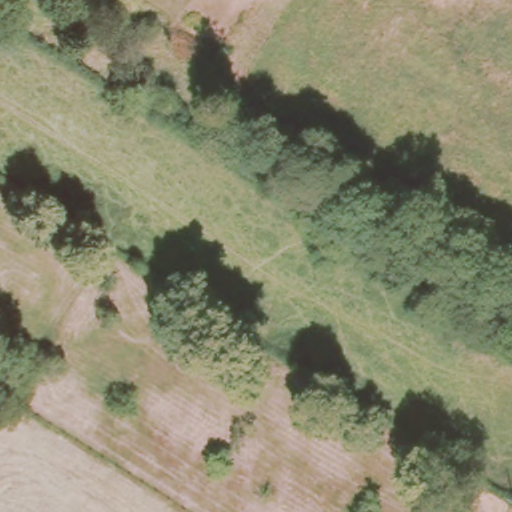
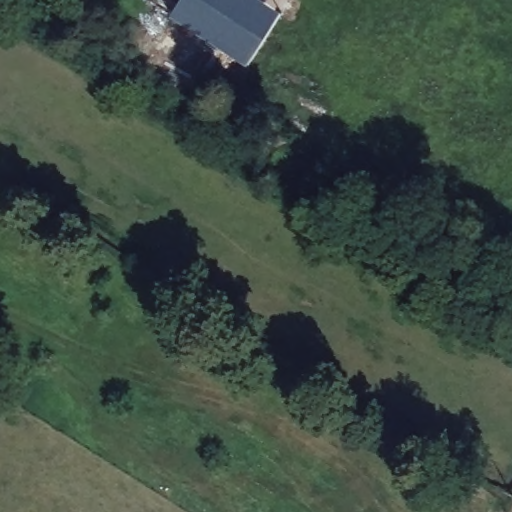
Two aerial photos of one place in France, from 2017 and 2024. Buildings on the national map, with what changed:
new [(249,67),(171,18),(182,0),(262,0),(282,14),(249,67)]

